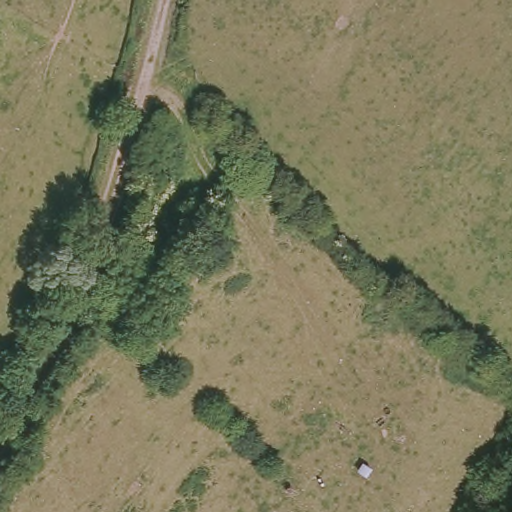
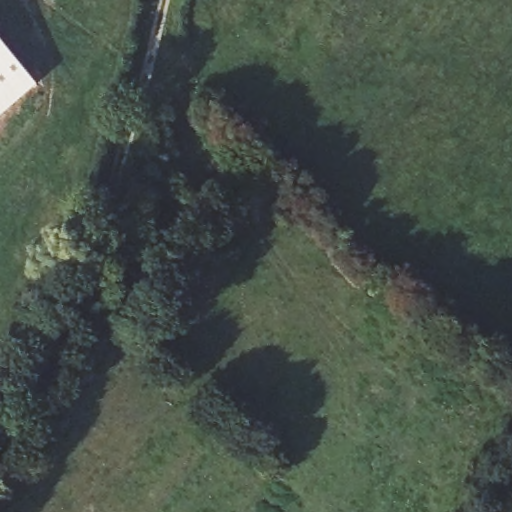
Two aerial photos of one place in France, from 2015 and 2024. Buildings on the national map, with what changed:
new [(0,117),(0,49),(33,88),(0,117)]

